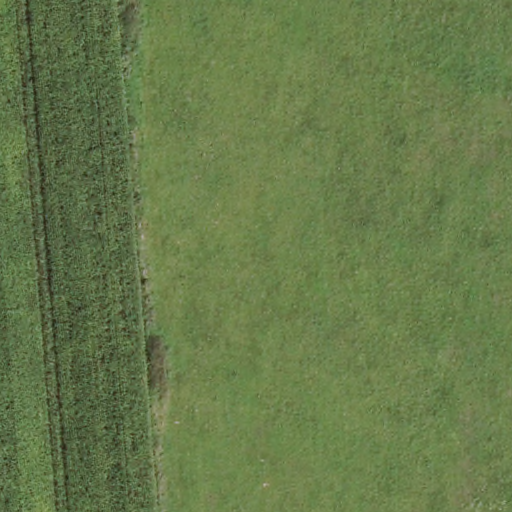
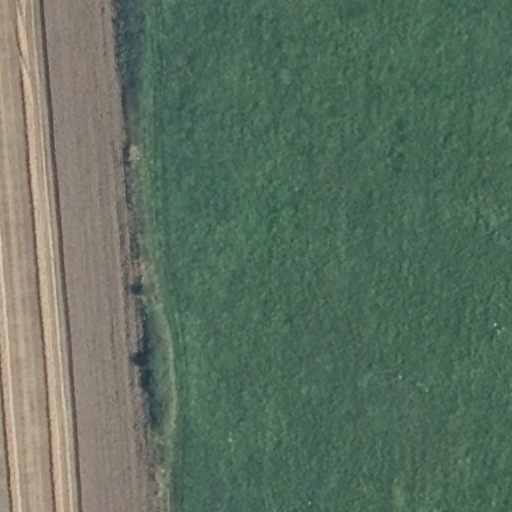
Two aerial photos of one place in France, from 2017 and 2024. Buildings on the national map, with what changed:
[]

